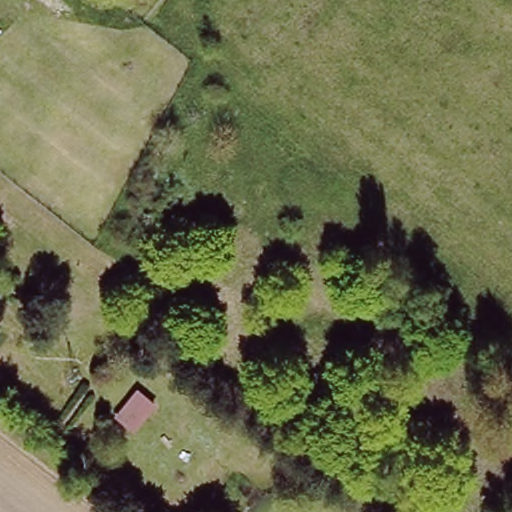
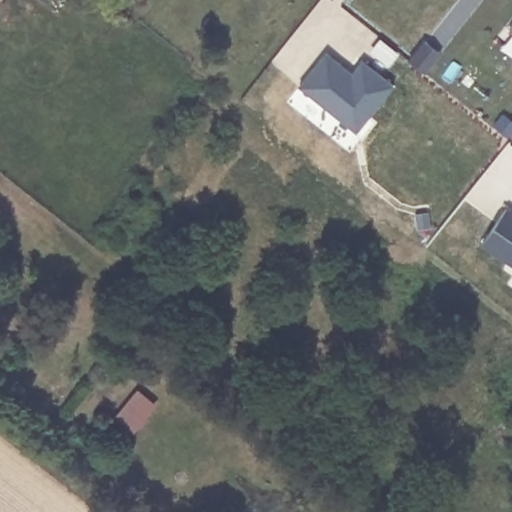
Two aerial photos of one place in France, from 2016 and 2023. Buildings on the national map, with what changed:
new [(509,31),(512,28),(512,34),(509,31)]
new [(425,40),(441,53),(425,72),(410,60),(425,40)]
new [(327,52),(353,72),(363,60),(394,84),(357,130),(300,85),(322,57),(327,52)]
new [(504,111),(512,118),(512,131),(509,135),(495,123),(504,111)]
new [(484,246),(508,208),(512,210),(512,265),(484,246)]
unchanged [(134,388),(156,406),(135,436),(112,416),(134,388)]

